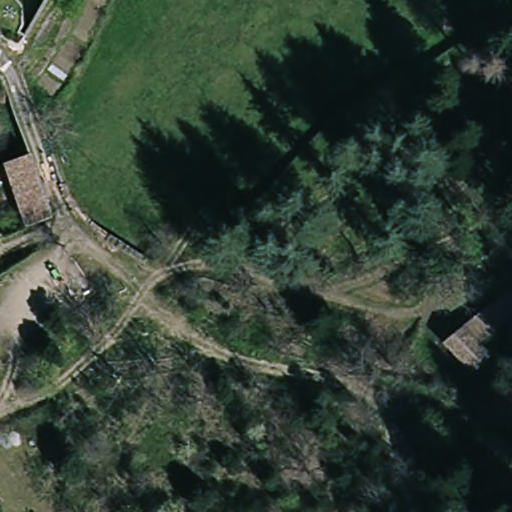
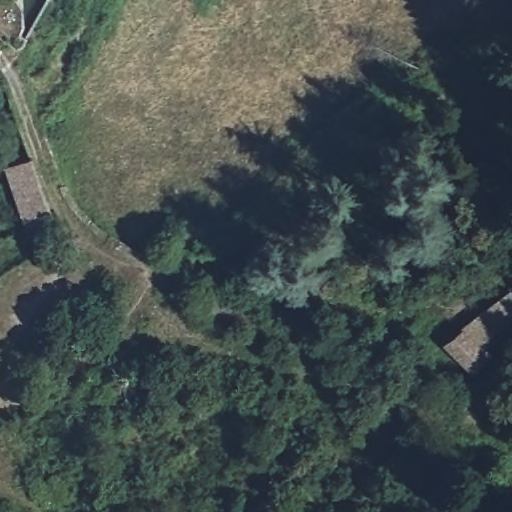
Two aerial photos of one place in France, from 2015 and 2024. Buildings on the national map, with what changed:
unchanged [(31,161),(50,223),(27,231),(5,167),(31,161)]
unchanged [(507,290),(512,295),(512,322),(480,347),(492,362),(475,376),(444,342),(507,290)]

